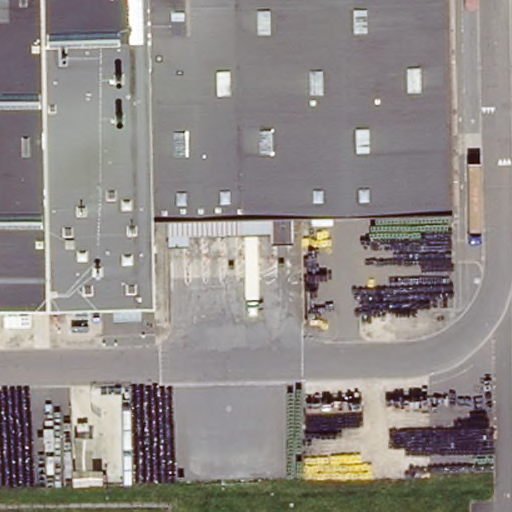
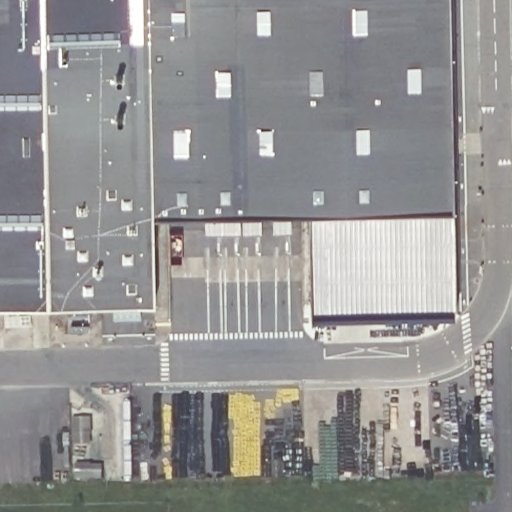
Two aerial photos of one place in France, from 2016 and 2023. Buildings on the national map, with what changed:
unchanged [(270,220),(240,221),(168,222),(152,222),(154,312),(0,315),(0,0),(447,0),(451,216),(292,220),(292,251),(271,251),(270,220)]
new [(307,315),(307,219),(451,216),(455,312),(307,315)]

